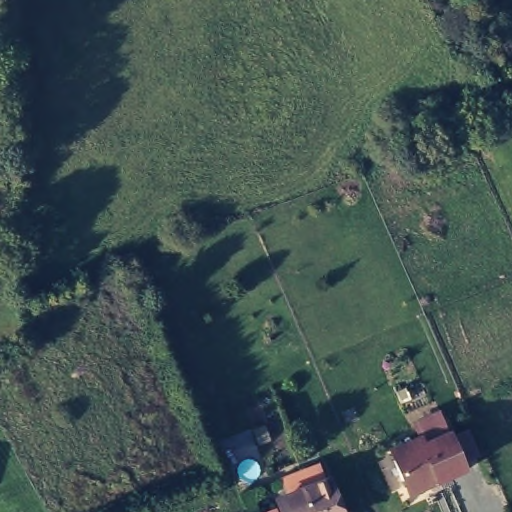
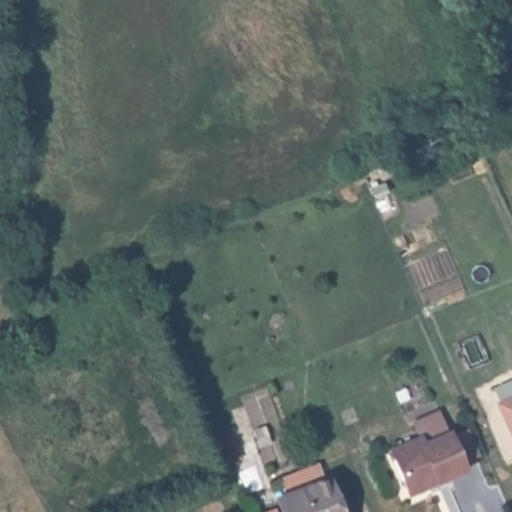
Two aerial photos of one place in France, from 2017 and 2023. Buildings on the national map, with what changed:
new [(512,395),(512,433),(498,401),(512,395)]
unchanged [(466,467),(437,480),(434,475),(406,487),(389,447),(421,434),(424,441),(449,430),(466,467)]
unchanged [(328,493),(334,492),(341,512),(288,512),(286,509),(293,507),(288,492),(323,480),(328,493)]

